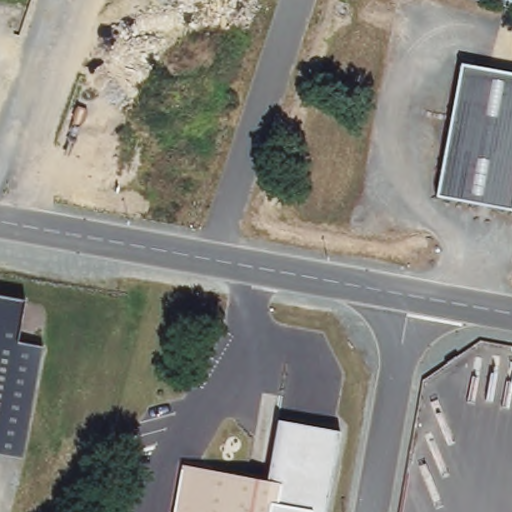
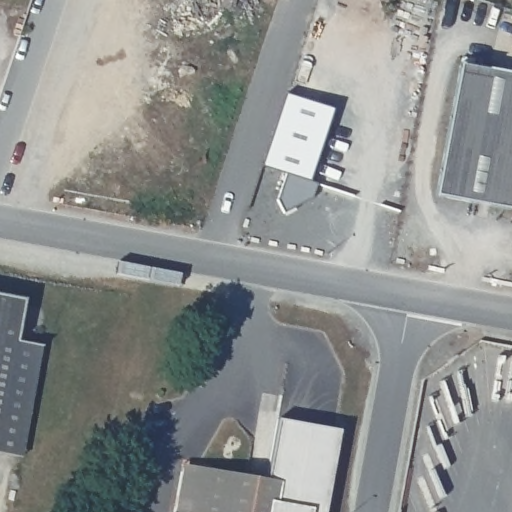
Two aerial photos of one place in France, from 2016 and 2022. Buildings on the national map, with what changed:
unchanged [(512,75),(512,214),(435,196),(458,65),(512,75)]
new [(286,94),(333,109),(309,182),(316,185),(312,199),(283,213),(278,201),(286,175),(262,167),(286,94)]
unchanged [(19,343),(1,453),(0,453),(0,296),(25,302),(19,343)]
unchanged [(42,348),(24,456),(1,453),(19,343),(42,348)]
unchanged [(266,480),(278,421),(338,432),(323,512),(173,512),(182,466),(266,480)]

